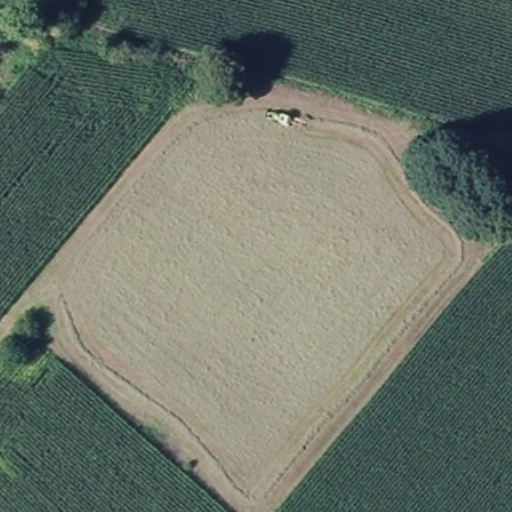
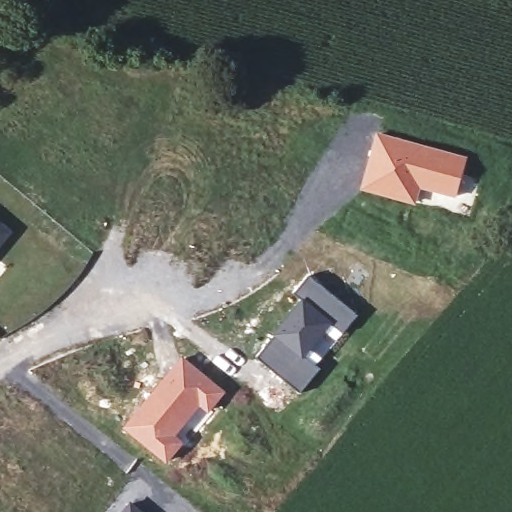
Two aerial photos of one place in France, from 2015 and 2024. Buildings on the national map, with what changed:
new [(377,130),(469,156),(456,197),(422,189),(417,205),(360,190),(377,130)]
new [(14,232),(0,250),(0,220),(14,232)]
new [(301,299),(294,293),(309,275),(358,315),(318,365),(321,367),(301,392),(257,356),(301,299)]
new [(183,356),(227,391),(208,412),(200,407),(177,435),(185,442),(168,462),(123,427),(183,356)]
new [(131,501),(145,512),(122,512),(131,501)]

